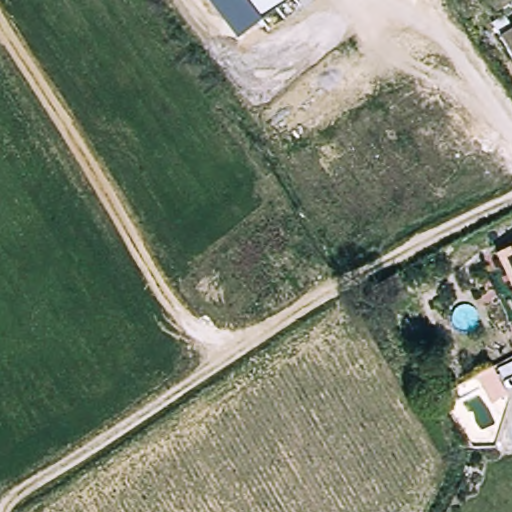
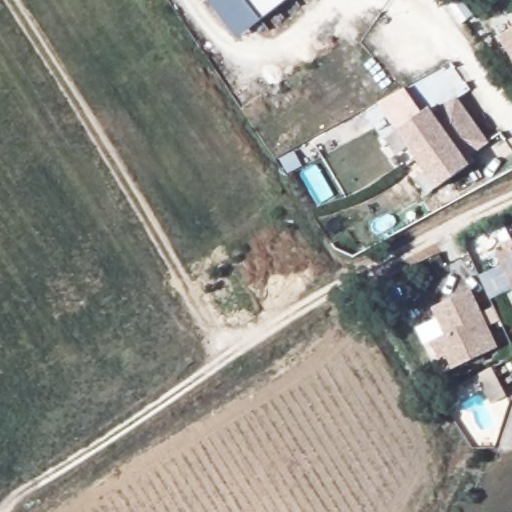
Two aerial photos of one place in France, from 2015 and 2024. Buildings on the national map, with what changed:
unchanged [(261,20),(237,39),(208,0),(283,0),(261,20)]
unchanged [(502,41),(512,34),(512,56),(502,41)]
new [(395,132),(428,107),(432,114),(456,96),(488,144),(465,160),(468,165),(435,189),(395,132)]
unchanged [(496,265),(512,257),(512,292),(496,265)]
new [(470,290),(497,349),(445,375),(429,342),(443,335),(432,309),(470,290)]

